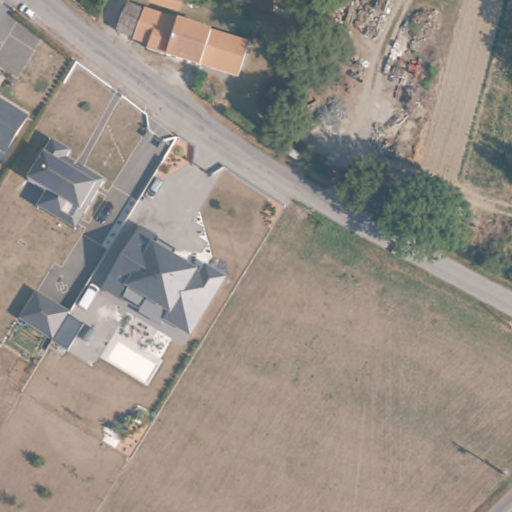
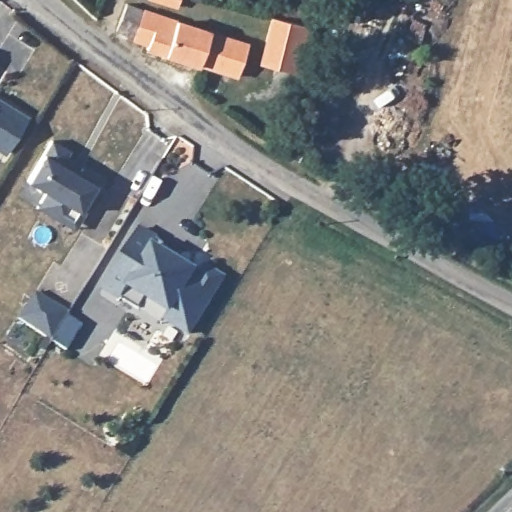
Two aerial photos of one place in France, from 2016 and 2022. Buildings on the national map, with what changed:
unchanged [(128,29),(134,9),(236,37),(234,53),(220,69),(155,50),(128,29)]
new [(308,27),(296,74),(258,64),(271,17),(308,27)]
unchanged [(3,154),(0,152),(0,104),(24,119),(3,154)]
unchanged [(34,206),(37,201),(44,191),(25,180),(50,140),(68,151),(63,158),(73,164),(69,170),(76,175),(80,168),(101,181),(81,214),(71,229),(34,206)]
unchanged [(163,322),(168,313),(145,298),(138,309),(105,290),(137,230),(175,251),(173,257),(193,268),(196,263),(226,280),(191,337),(163,322)]
unchanged [(12,314),(30,286),(63,307),(46,335),(12,314)]

